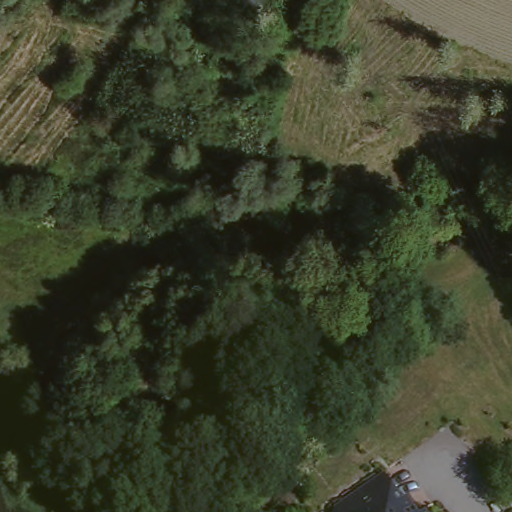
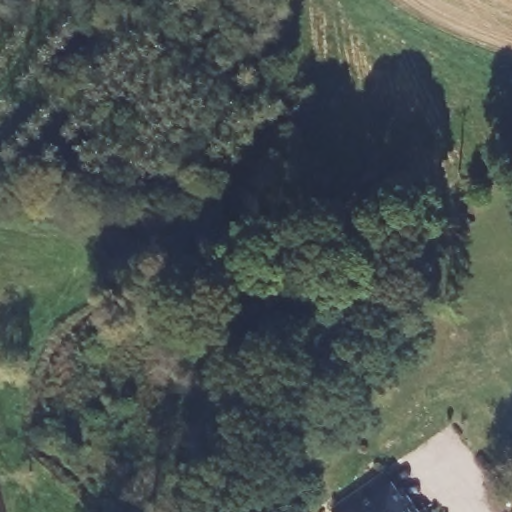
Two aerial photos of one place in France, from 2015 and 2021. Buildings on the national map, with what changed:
unchanged [(335,510),(343,504),(383,477),(406,512),(335,512),(335,510)]
unchanged [(412,509),(414,512),(406,512),(412,509)]

